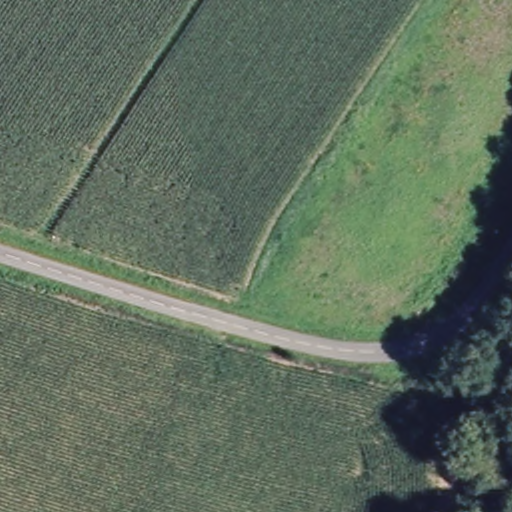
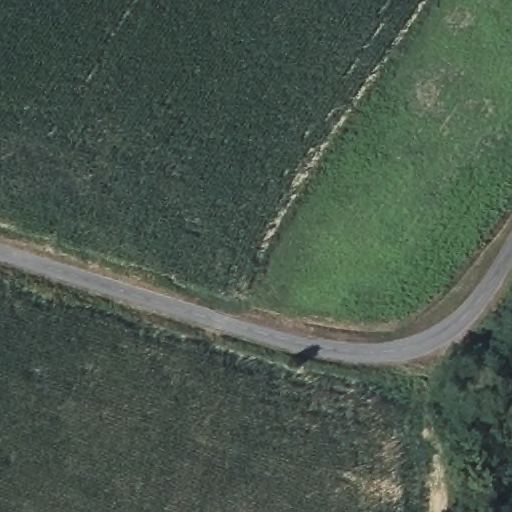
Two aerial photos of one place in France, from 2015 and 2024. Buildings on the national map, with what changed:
[]

